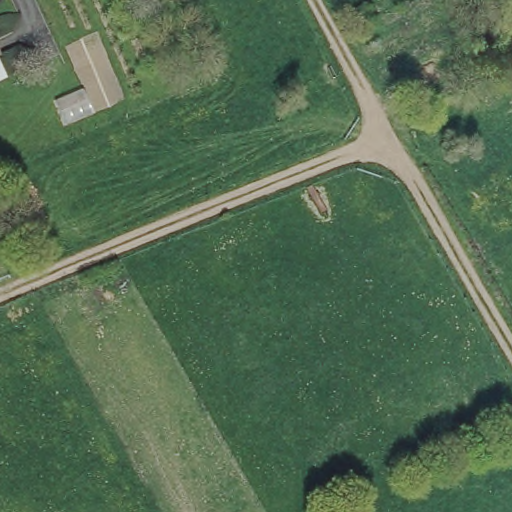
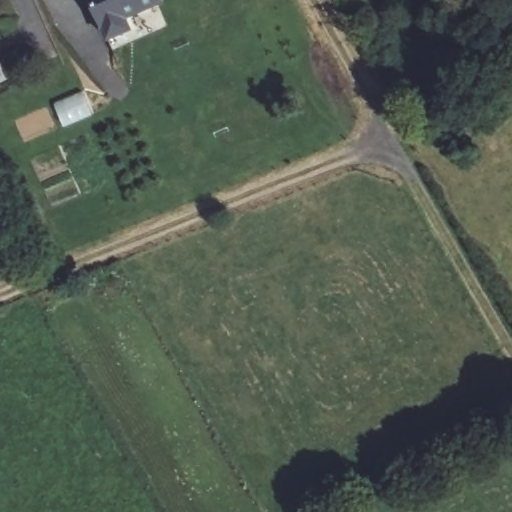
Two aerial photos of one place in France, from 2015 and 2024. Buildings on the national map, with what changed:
new [(126,18),(130,30),(109,40),(91,0),(161,0),(162,3),(126,18)]

